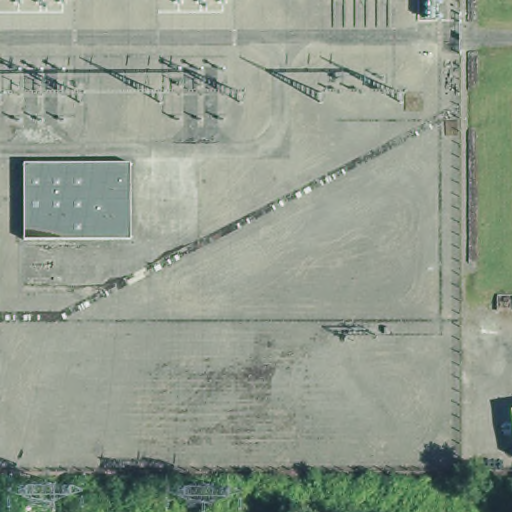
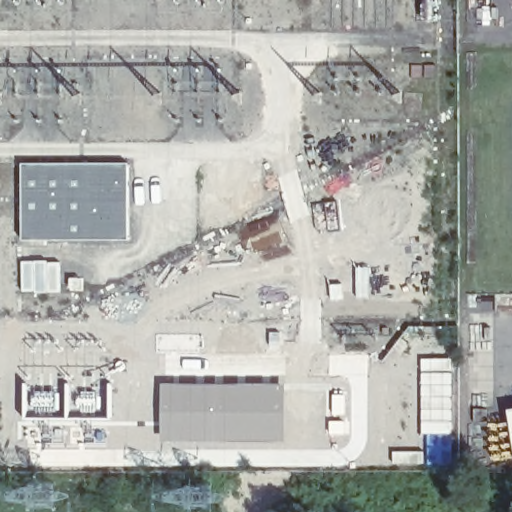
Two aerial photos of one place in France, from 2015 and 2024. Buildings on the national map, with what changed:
unchanged [(28,165),(132,161),(130,244),(24,249),(28,165)]
new [(284,384),(286,444),(252,445),(161,443),(161,381),(284,384)]
unchanged [(511,406),(512,406),(512,414),(511,406)]

